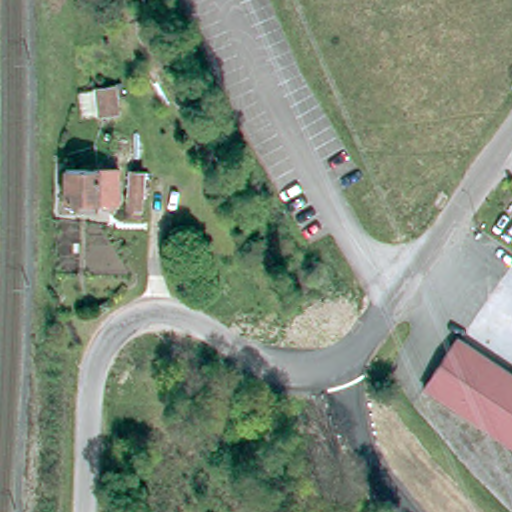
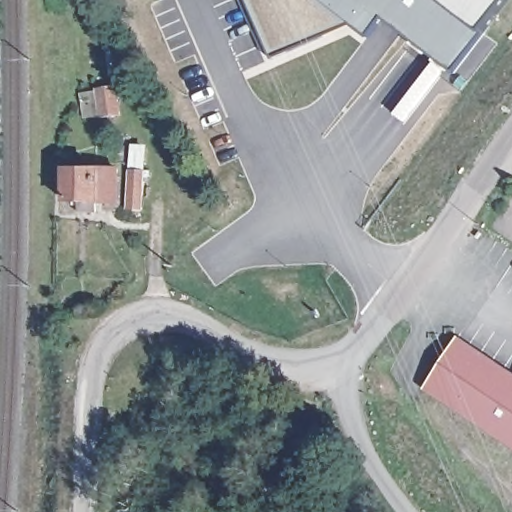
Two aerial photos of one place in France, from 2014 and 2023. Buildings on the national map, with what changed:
new [(484,33),(453,72),(383,18),(368,37),(351,22),(271,59),(246,0),(509,0),(484,33)]
unchanged [(114,89),(116,112),(101,113),(99,91),(114,89)]
unchanged [(92,159),(92,163),(103,163),(101,190),(75,189),(65,189),(60,189),(61,181),(62,165),(62,158),(92,159)]
unchanged [(141,209),(126,207),(129,172),(144,174),(141,209)]
unchanged [(512,370),(512,442),(422,384),(457,333),(512,370)]
unchanged [(511,452),(512,450),(512,453),(511,452)]

